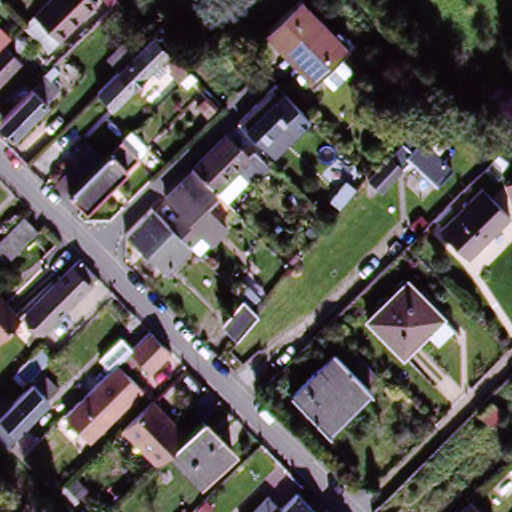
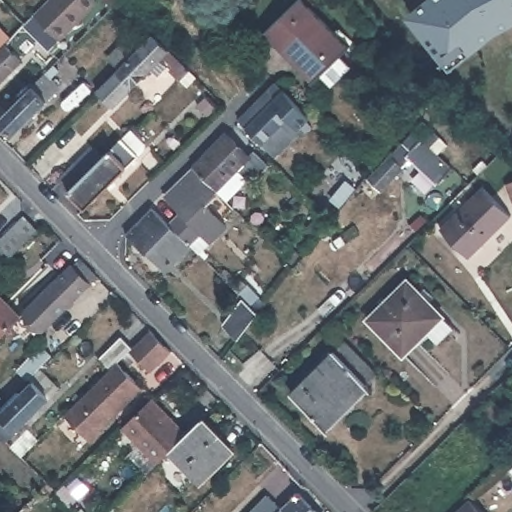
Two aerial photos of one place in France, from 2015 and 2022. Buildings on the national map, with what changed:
unchanged [(49,0),(99,0),(70,28),(59,39),(35,14),(45,3),(49,0)]
unchanged [(272,25),(298,0),(306,0),(350,44),(312,79),(296,62),(266,30),(272,25)]
new [(499,31),(473,52),(452,68),(446,62),(408,14),(426,0),(512,0),(512,25),(499,31)]
unchanged [(0,29),(1,31),(4,29),(9,34),(5,38),(23,57),(0,79),(0,29)]
unchanged [(160,79),(150,69),(119,100),(103,85),(126,63),(115,51),(134,31),(145,44),(155,35),(190,71),(179,81),(170,72),(174,67),(162,56),(158,60),(169,70),(160,79)]
unchanged [(49,70),(52,73),(48,77),(60,88),(11,135),(0,123),(0,118),(9,109),(49,70)]
unchanged [(273,82),(277,79),(302,106),(310,114),(299,124),(272,150),(261,139),(239,116),(273,82)]
unchanged [(219,106),(207,117),(196,105),(209,94),(219,106)]
unchanged [(448,168),(433,185),(405,160),(378,193),(365,182),(414,122),(433,138),(425,147),(448,168)]
unchanged [(253,145),(270,161),(252,178),(250,176),(230,197),(192,161),(226,128),(249,150),(253,145)]
unchanged [(69,193),(110,147),(130,165),(86,205),(69,193)]
unchanged [(505,167),(512,160),(512,175),(505,167)]
unchanged [(76,162),(85,171),(67,189),(58,179),(76,162)]
unchanged [(190,238),(180,228),(176,225),(172,221),(182,211),(166,194),(193,168),(217,192),(209,201),(229,223),(201,250),(190,238)]
unchanged [(508,207),(467,248),(440,221),(481,180),(508,207)]
unchanged [(331,201),(346,183),(355,189),(340,208),(331,201)]
unchanged [(165,264),(126,225),(149,203),(165,220),(168,216),(172,221),(176,225),(180,228),(190,238),(165,264)]
unchanged [(322,223),(310,236),(303,229),(315,216),(322,223)]
unchanged [(30,238),(10,258),(0,249),(0,242),(21,220),(35,233),(30,238)]
unchanged [(297,251),(303,256),(296,264),(290,259),(297,251)]
unchanged [(42,333),(25,315),(36,302),(37,301),(41,304),(69,276),(65,273),(76,261),(90,274),(95,279),(42,333)]
unchanged [(407,276),(452,323),(435,340),(425,330),(402,353),(365,316),(407,276)]
unchanged [(247,299),(239,291),(245,285),(267,306),(261,313),(239,341),(224,326),(247,299)]
new [(0,337),(0,300),(20,320),(0,337)]
unchanged [(66,413),(67,412),(106,372),(112,366),(102,354),(123,333),(134,344),(150,328),(150,327),(155,333),(170,347),(151,367),(131,347),(118,360),(143,387),(90,438),(66,413)]
unchanged [(342,343),(373,374),(325,425),(293,395),(342,343)]
unchanged [(30,379),(21,371),(40,352),(48,359),(30,379)]
unchanged [(5,408),(6,407),(10,410),(35,384),(32,381),(44,369),(62,387),(20,432),(17,430),(7,441),(0,433),(0,405),(5,408)]
unchanged [(189,434),(171,451),(169,454),(160,463),(125,427),(154,398),(189,434)]
unchanged [(491,399),(503,411),(490,424),(479,412),(491,399)]
unchanged [(200,481),(171,451),(189,434),(196,426),(204,418),(234,448),(200,481)]
unchanged [(76,478),(88,489),(76,501),(65,490),(76,478)]
unchanged [(498,512),(453,512),(476,489),(498,512)]
unchanged [(305,491),(327,512),(285,512),(297,499),(305,491)]
unchanged [(445,511),(445,512),(419,512),(432,498),(445,511)]

